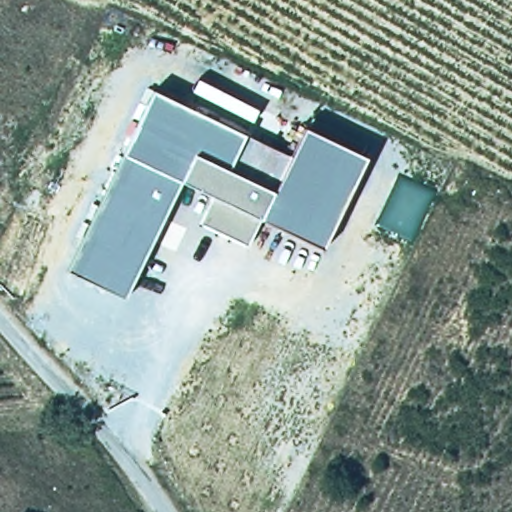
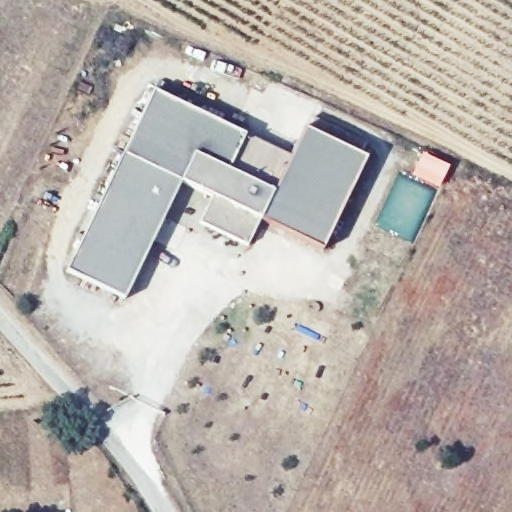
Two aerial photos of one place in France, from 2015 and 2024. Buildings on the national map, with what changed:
unchanged [(323,249),(260,220),(247,246),(200,224),(213,197),(180,183),(125,298),(67,270),(153,92),(292,159),(306,130),(366,159),(323,249)]

